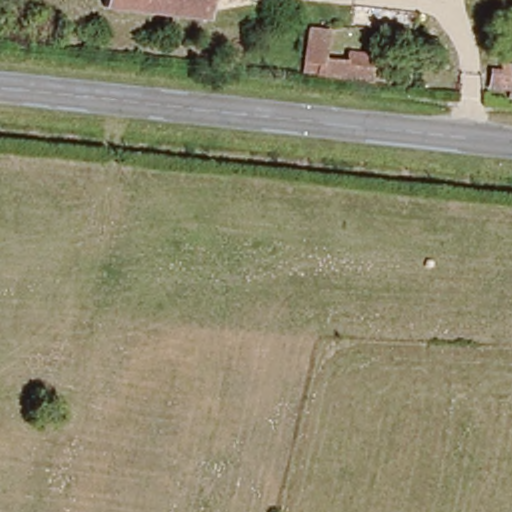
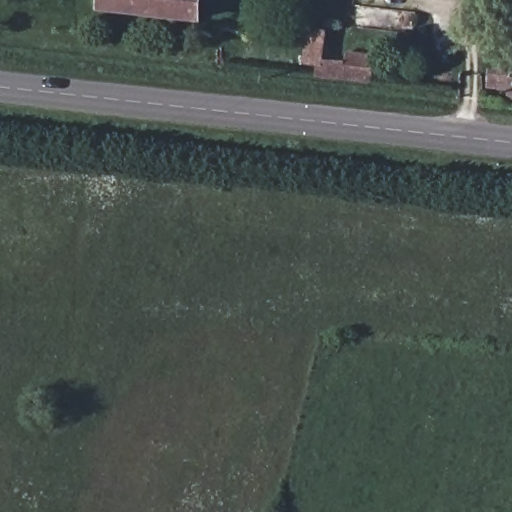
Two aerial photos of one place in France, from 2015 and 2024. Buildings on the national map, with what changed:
unchanged [(202,21),(106,9),(107,0),(206,0),(202,21)]
unchanged [(330,30),(328,49),(375,54),(373,81),(303,71),(310,29),(330,30)]
unchanged [(496,74),(497,65),(512,67),(512,93),(495,90),(496,74)]

